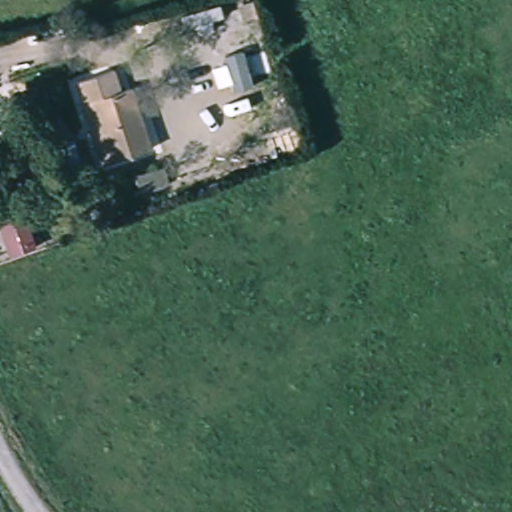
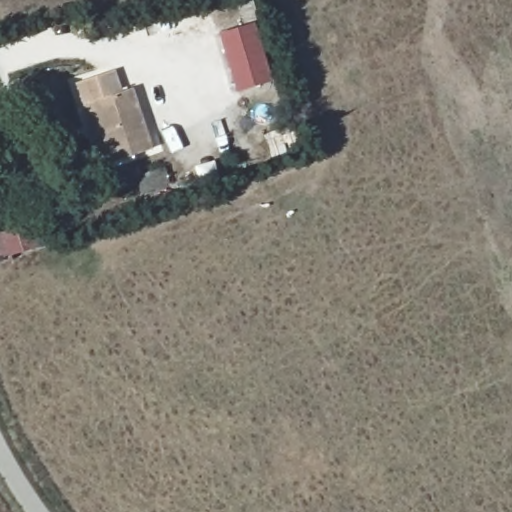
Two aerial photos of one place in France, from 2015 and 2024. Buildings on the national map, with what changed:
unchanged [(257,16),(247,19),(242,3),(252,0),(257,16)]
new [(255,22),(272,81),(235,92),(218,34),(255,22)]
unchanged [(147,153),(100,169),(72,86),(110,74),(117,95),(127,92),(147,153)]
unchanged [(165,186),(141,193),(136,175),(160,169),(165,186)]

